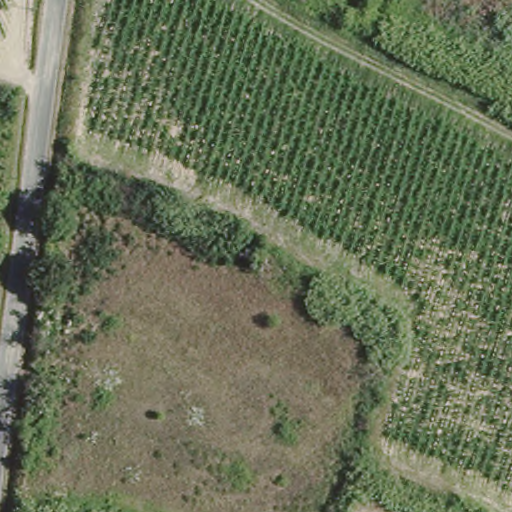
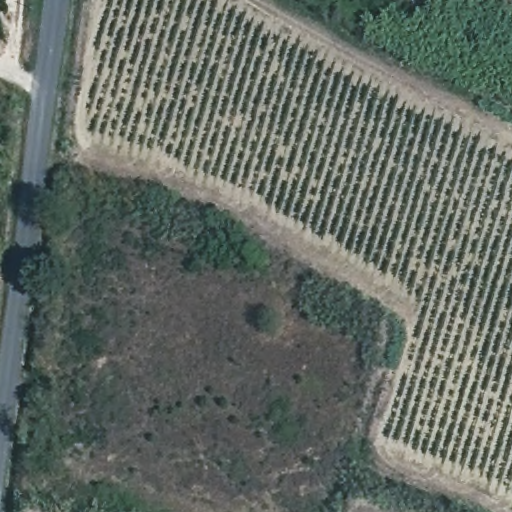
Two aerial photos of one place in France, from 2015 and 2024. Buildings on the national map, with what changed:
[]

